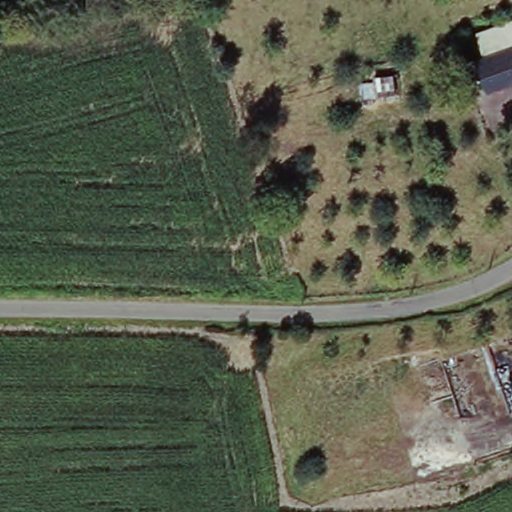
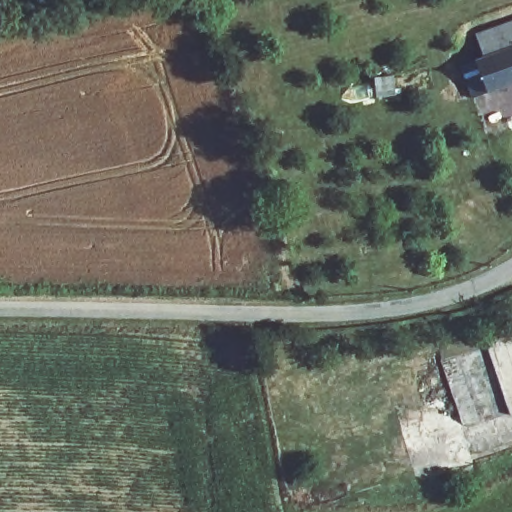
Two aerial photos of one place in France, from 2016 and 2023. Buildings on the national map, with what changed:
unchanged [(497,94),(481,99),(470,68),(493,60),(486,37),(504,29),(512,26),(512,89),(497,94)]
unchanged [(401,74),(402,91),(384,94),(382,76),(401,74)]

